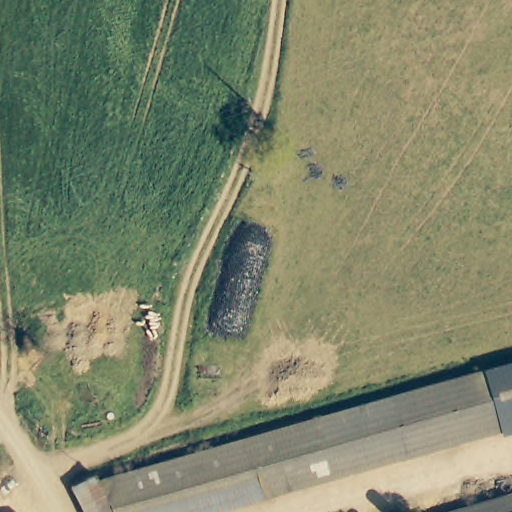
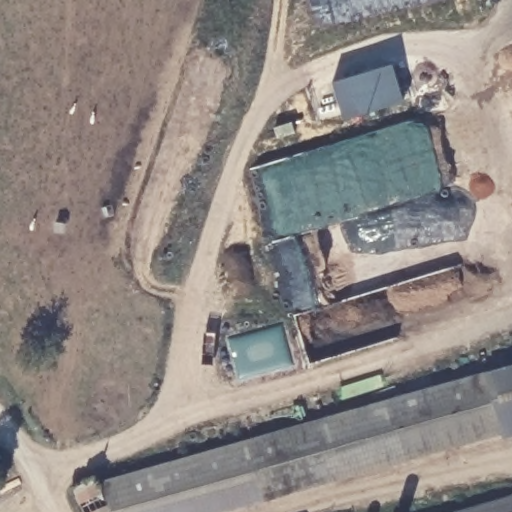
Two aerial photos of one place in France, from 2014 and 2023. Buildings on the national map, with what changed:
new [(393,64),(404,100),(347,118),(335,82),(393,64)]
unchanged [(512,367),(512,378),(509,368),(512,367)]
unchanged [(509,368),(512,378),(512,426),(208,512),(136,512),(135,512),(134,512),(112,512),(97,484),(118,475),(121,480),(509,368)]
unchanged [(512,497),(512,512),(460,512),(512,497)]

